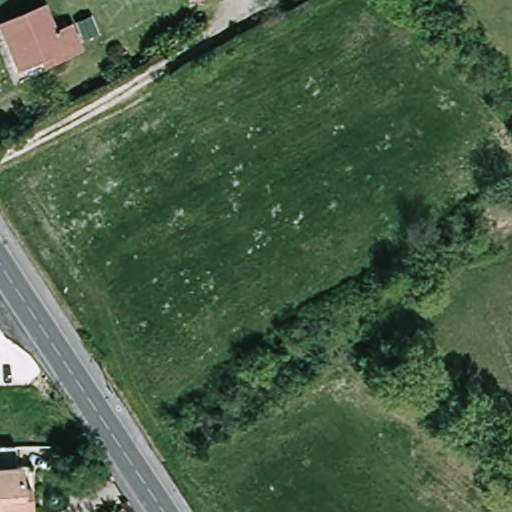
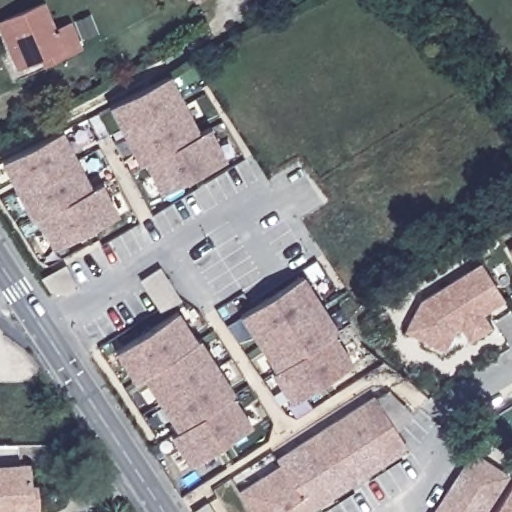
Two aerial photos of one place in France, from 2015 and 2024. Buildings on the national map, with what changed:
unchanged [(25,65),(18,68),(0,26),(0,22),(5,20),(45,3),(57,30),(70,24),(81,48),(52,61),(43,64),(41,58),(25,65)]
new [(171,74),(200,131),(210,126),(227,159),(160,194),(144,162),(138,165),(109,106),(171,74)]
new [(62,129),(92,187),(102,182),(119,214),(52,249),(37,218),(31,220),(2,161),(62,129)]
new [(512,246),(512,255),(508,249),(512,246)]
new [(420,300),(481,262),(505,300),(484,314),(492,328),(469,342),(462,328),(455,332),(445,352),(405,332),(420,300)]
new [(302,274),(339,330),(335,334),(352,363),(290,403),(270,373),(274,370),(240,316),(302,274)]
new [(178,309),(197,340),(200,338),(235,394),(233,395),(252,424),(190,465),(170,435),(176,431),(142,377),(134,382),(115,352),(178,309)]
new [(238,491),(279,464),(276,459),(374,394),(410,449),(313,512),(283,512),(282,510),(279,512),(251,512),(238,491)]
unchanged [(0,446),(22,446),(23,464),(27,464),(29,488),(37,488),(38,512),(0,512),(0,446)]
new [(472,451),(510,475),(486,512),(433,512),(472,451)]
new [(512,483),(512,512),(494,512),(512,483)]

